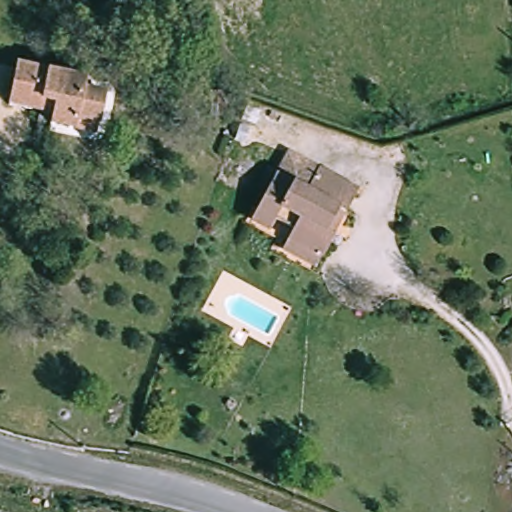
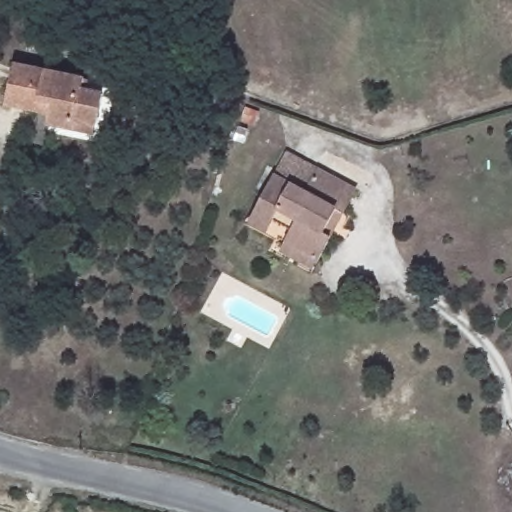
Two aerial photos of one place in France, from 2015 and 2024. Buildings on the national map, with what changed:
unchanged [(84,89),(106,95),(95,133),(71,125),(68,135),(46,129),(50,118),(10,106),(25,56),(88,75),(84,89)]
unchanged [(290,239),(301,219),(284,210),(272,232),(253,222),(266,200),(281,173),(292,152),(324,169),(361,190),(350,210),(334,239),(323,258),(318,268),(285,249),(290,239)]

